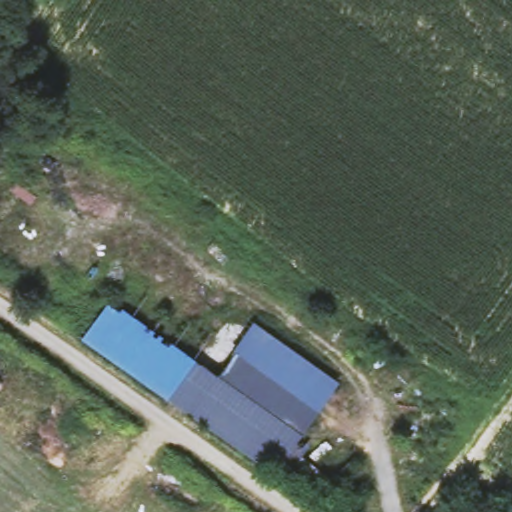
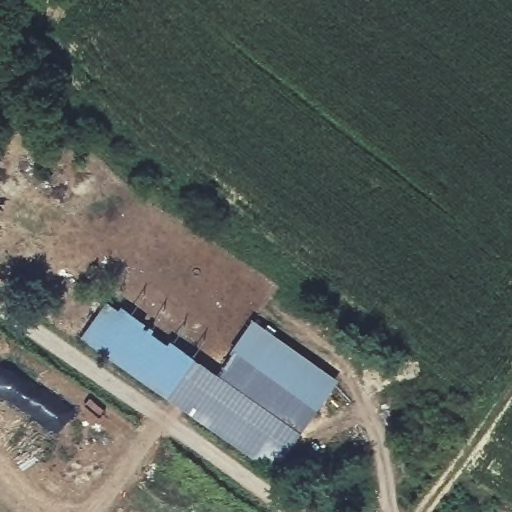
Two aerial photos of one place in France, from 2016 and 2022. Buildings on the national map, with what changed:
unchanged [(337,380),(295,438),(308,445),(313,439),(326,447),(334,437),(357,456),(343,473),(338,469),(325,489),(282,460),(275,469),(79,340),(108,299),(217,375),(253,320),(337,380)]

